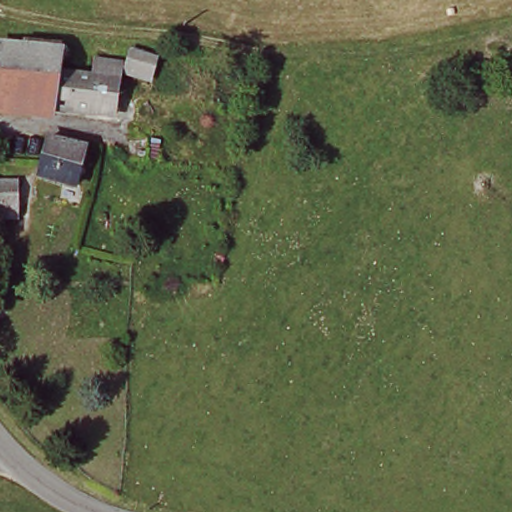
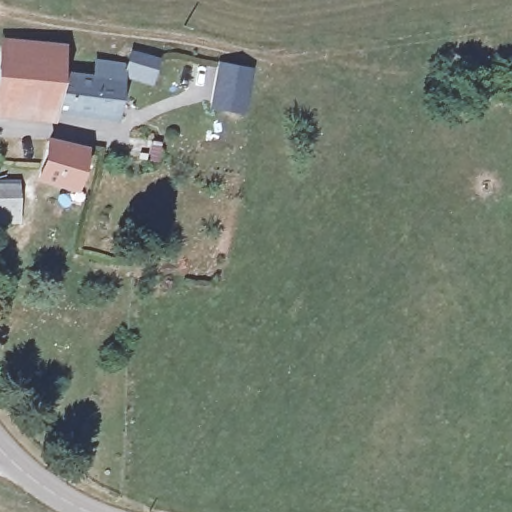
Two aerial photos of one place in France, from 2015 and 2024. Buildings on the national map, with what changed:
unchanged [(0,49),(54,49),(53,77),(50,114),(0,110),(0,49)]
unchanged [(96,61),(126,64),(127,51),(156,52),(155,85),(112,83),(93,81),(96,61)]
new [(217,60),(254,67),(246,115),(208,109),(217,60)]
unchanged [(53,77),(75,79),(93,81),(112,83),(110,119),(72,116),(50,114),(53,77)]
unchanged [(77,186),(64,184),(43,179),(43,163),(48,142),(63,144),(83,150),(77,186)]
unchanged [(20,218),(0,217),(0,179),(19,181),(20,218)]

